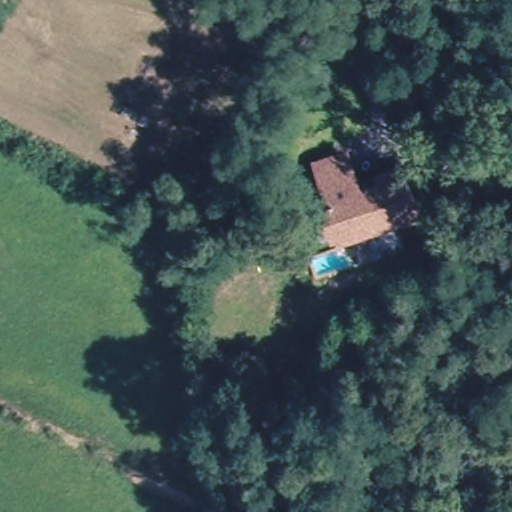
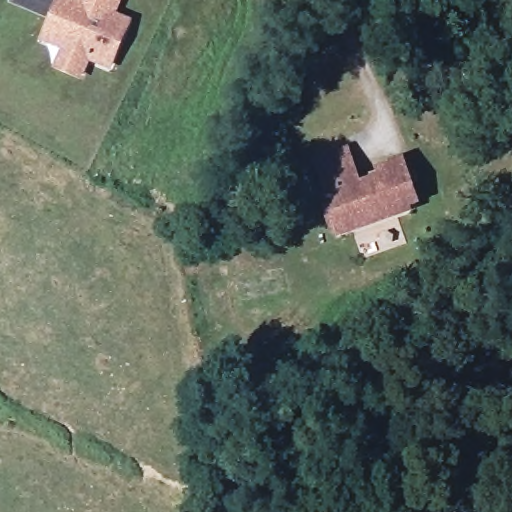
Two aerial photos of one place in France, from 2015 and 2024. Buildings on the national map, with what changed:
new [(60,51),(39,42),(56,0),(123,0),(118,14),(133,21),(111,72),(90,64),(83,82),(52,70),(60,51)]
unchanged [(341,229),(338,224),(333,226),(320,195),(325,193),(312,162),(342,149),(361,192),(384,182),(380,174),(399,166),(411,193),(403,197),(405,202),(341,229)]

